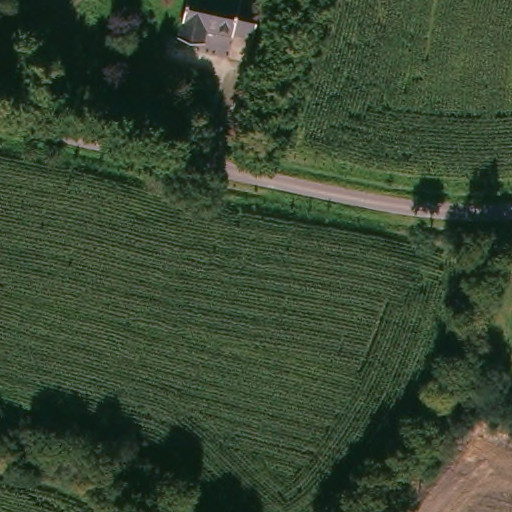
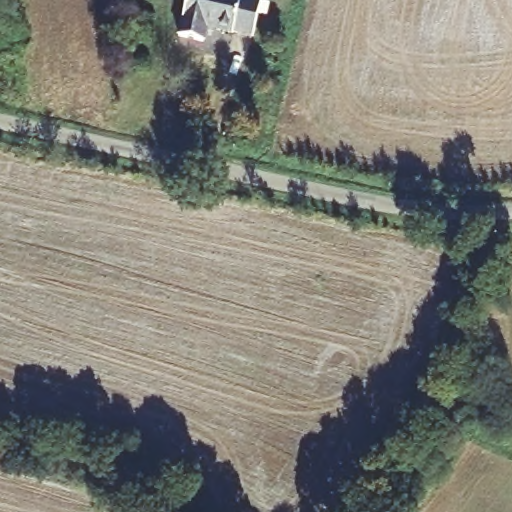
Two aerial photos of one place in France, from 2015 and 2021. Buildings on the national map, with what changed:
unchanged [(254,0),(247,36),(199,26),(197,41),(172,37),(179,0),(254,0)]

